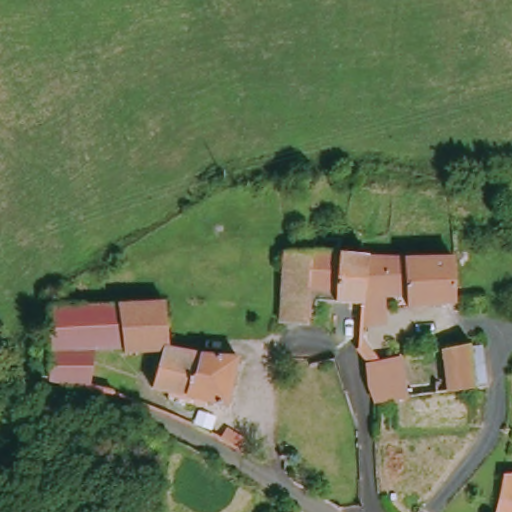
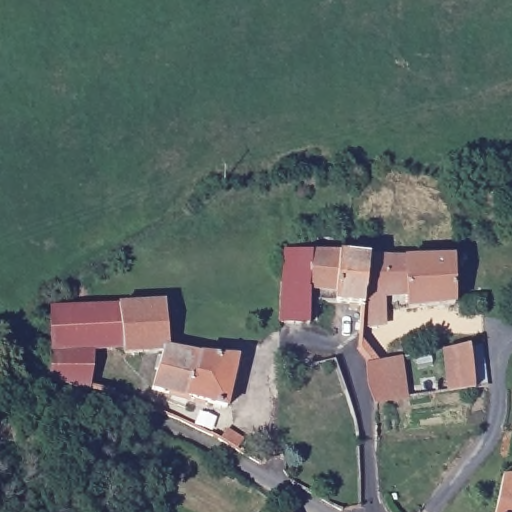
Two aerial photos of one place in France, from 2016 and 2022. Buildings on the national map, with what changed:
unchanged [(451,307),(407,311),(363,343),(379,363),(403,358),(403,403),(376,408),(365,390),(363,364),(354,352),(358,307),(335,305),(305,306),(306,330),(278,327),(281,249),(309,254),(334,256),(364,257),(366,268),(403,270),(404,259),(452,261),(451,307)]
unchanged [(39,365),(49,369),(51,312),(59,305),(61,303),(168,314),(160,355),(124,352),(124,347),(90,344),(86,383),(34,369),(39,365)]
unchanged [(467,348),(483,342),(487,387),(472,392),(444,395),(443,382),(412,385),(407,360),(441,352),(467,348)]
unchanged [(221,411),(188,403),(186,412),(174,411),(176,402),(148,396),(159,356),(233,361),(221,411)]
unchanged [(512,484),(512,512),(496,512),(500,484),(512,484)]

